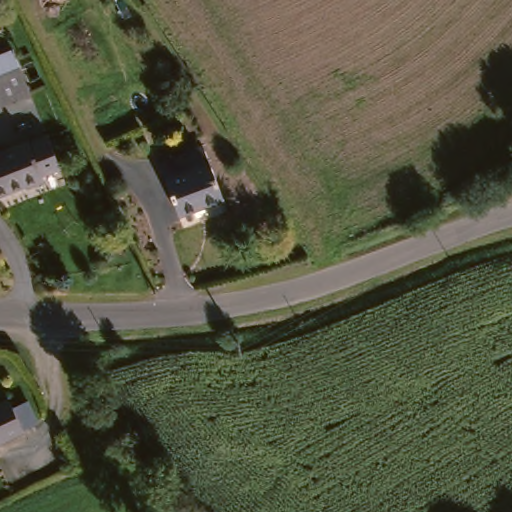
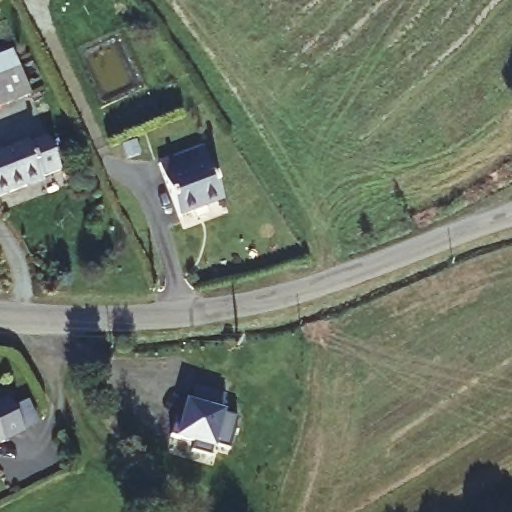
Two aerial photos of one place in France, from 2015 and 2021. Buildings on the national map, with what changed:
unchanged [(0,92),(0,62),(6,59),(16,85),(0,92)]
unchanged [(43,180),(41,183),(0,199),(0,158),(43,142),(56,175),(43,180)]
unchanged [(182,225),(162,174),(203,157),(225,207),(182,225)]
new [(222,412),(224,413),(224,414),(237,419),(229,450),(216,446),(214,451),(210,456),(193,451),(196,445),(176,440),(177,437),(170,436),(175,416),(182,418),(187,402),(190,404),(195,388),(225,395),(222,412)]
unchanged [(0,444),(0,402),(4,401),(19,435),(0,444)]

